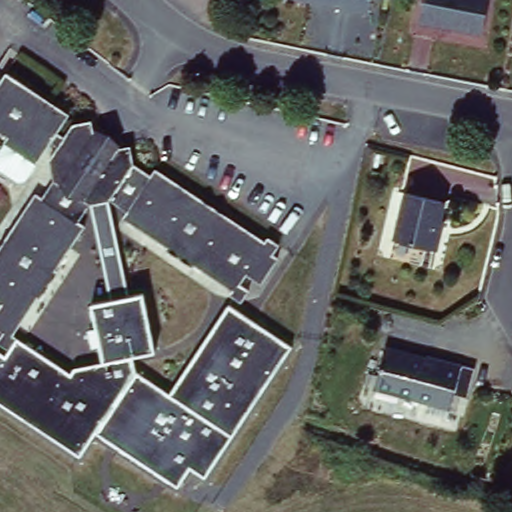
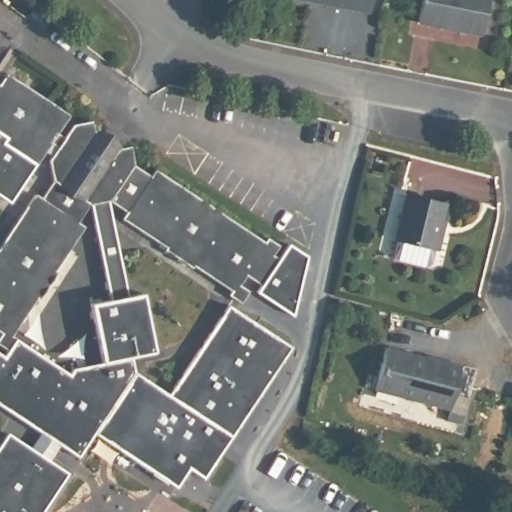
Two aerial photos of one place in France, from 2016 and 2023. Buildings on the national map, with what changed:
unchanged [(363,15),(295,0),(367,0),(363,15)]
unchanged [(480,37),(415,25),(421,0),(488,0),(480,37)]
unchanged [(72,111),(61,128),(69,133),(77,122),(95,118),(97,132),(120,147),(134,145),(137,164),(155,175),(158,169),(266,243),(270,239),(281,247),(275,255),(280,260),(286,247),(306,260),(292,316),(255,294),(261,285),(248,276),(241,286),(250,293),(243,305),(230,296),(234,291),(196,265),(194,268),(167,250),(169,247),(125,217),(130,210),(114,200),(111,200),(90,204),(80,219),(85,223),(56,265),(56,270),(41,292),(37,292),(12,329),(16,332),(9,344),(0,339),(0,334),(5,327),(0,325),(0,243),(39,189),(45,193),(58,174),(55,155),(63,143),(55,138),(29,176),(22,177),(0,161),(0,150),(13,132),(1,125),(0,127),(0,76),(4,79),(11,69),(72,111)]
unchanged [(440,236),(435,253),(393,244),(405,196),(442,205),(438,222),(443,224),(440,236)]
unchanged [(14,337),(70,373),(74,368),(101,362),(91,303),(110,300),(90,204),(105,201),(109,200),(130,295),(143,293),(154,355),(131,360),(135,372),(169,392),(227,305),(291,350),(205,478),(190,469),(178,486),(97,433),(80,458),(61,445),(41,431),(0,404),(0,352),(2,354),(9,344),(14,337)]
unchanged [(424,357),(425,354),(459,363),(448,408),(371,387),(382,346),(424,357)]
new [(51,463),(68,475),(44,512),(0,512),(0,445),(7,435),(30,448),(41,431),(61,445),(51,463)]

